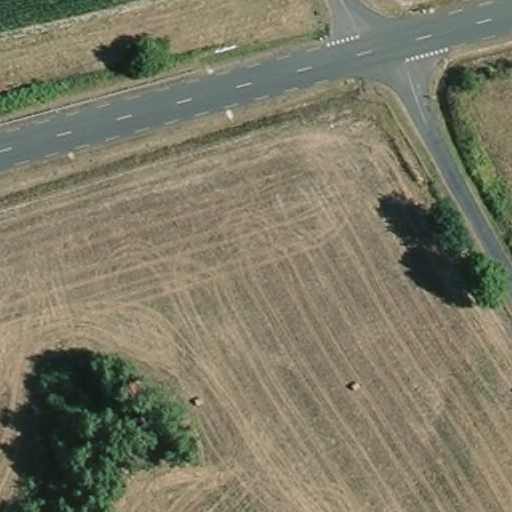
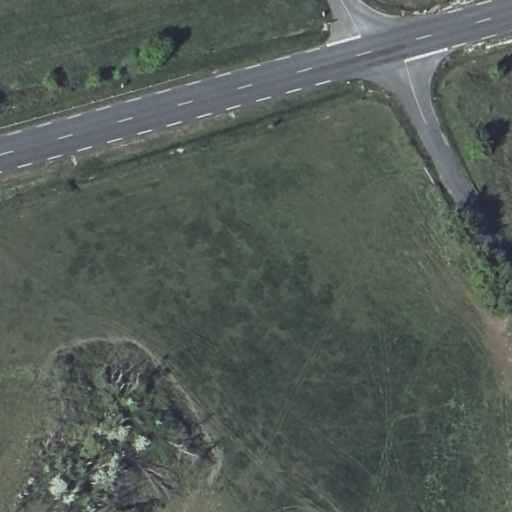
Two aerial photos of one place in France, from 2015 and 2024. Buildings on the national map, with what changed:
[]

